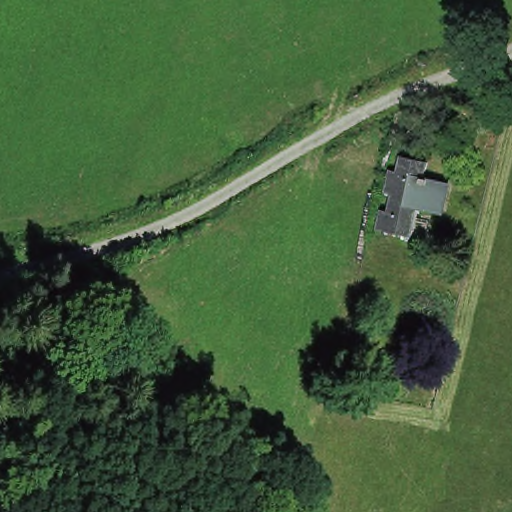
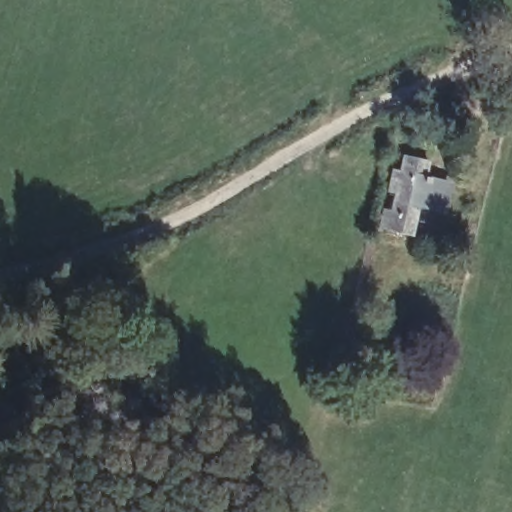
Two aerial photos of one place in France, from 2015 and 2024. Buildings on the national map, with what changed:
unchanged [(430,222),(416,218),(409,243),(376,235),(382,216),(388,219),(393,199),(386,196),(392,176),(398,178),(402,162),(427,169),(422,192),(437,196),(430,222)]

